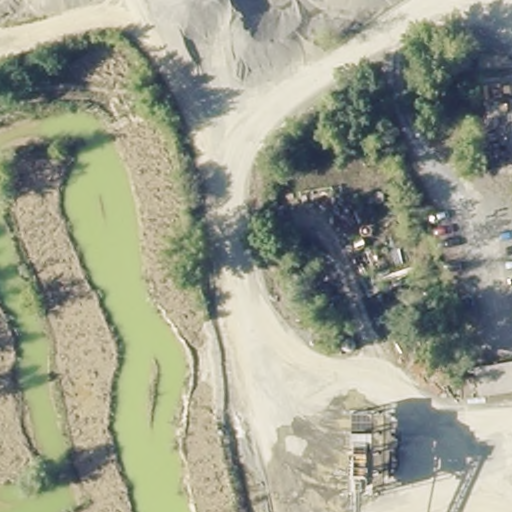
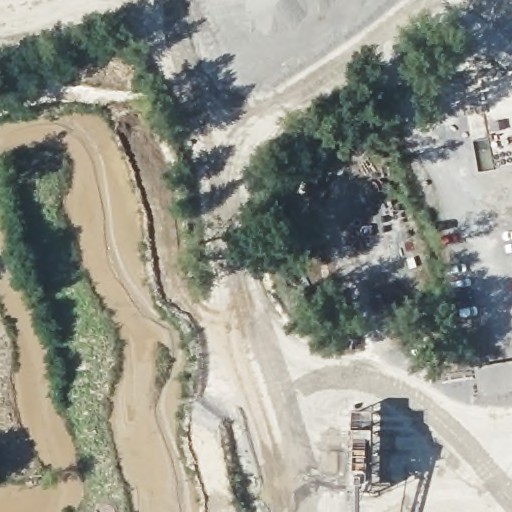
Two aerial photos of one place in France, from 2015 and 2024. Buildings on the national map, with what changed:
unchanged [(512,362),(512,394),(480,400),(475,369),(512,362)]

